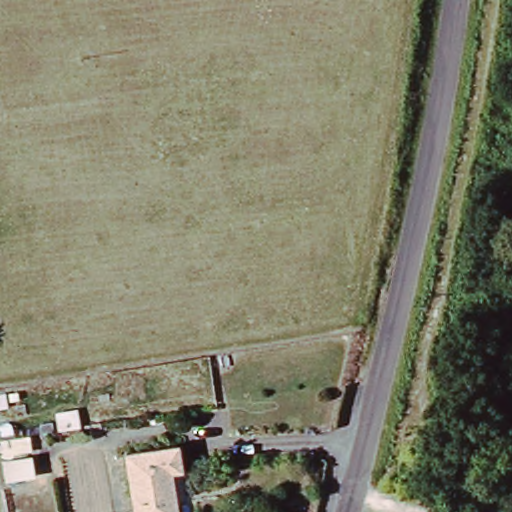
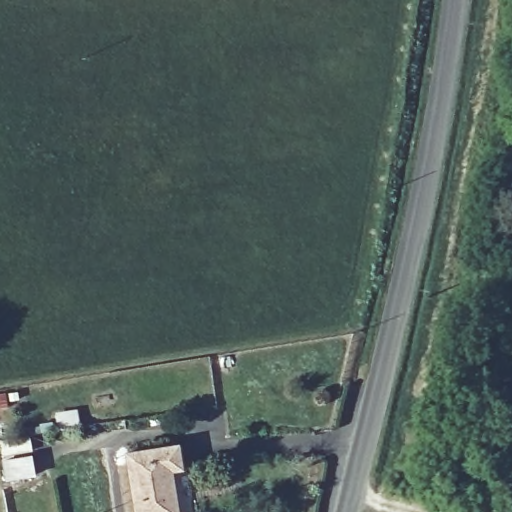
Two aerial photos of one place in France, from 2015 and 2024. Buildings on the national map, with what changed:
unchanged [(0,455),(0,440),(27,435),(31,453),(35,475),(4,480),(1,458),(0,455)]
unchanged [(139,512),(131,453),(177,446),(181,472),(171,474),(176,512),(139,512)]

